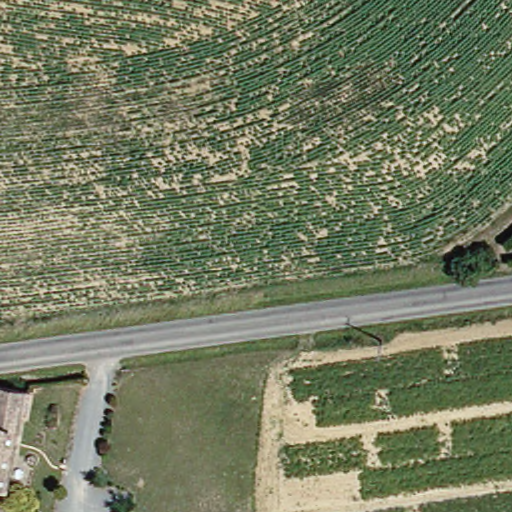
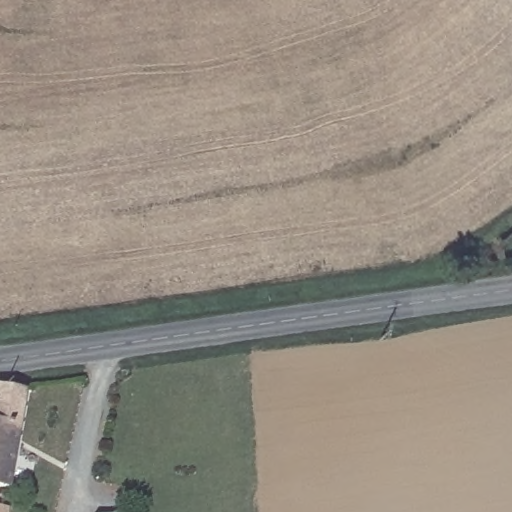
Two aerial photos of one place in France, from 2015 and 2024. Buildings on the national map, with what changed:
unchanged [(6,386),(0,417),(0,385),(6,386)]

